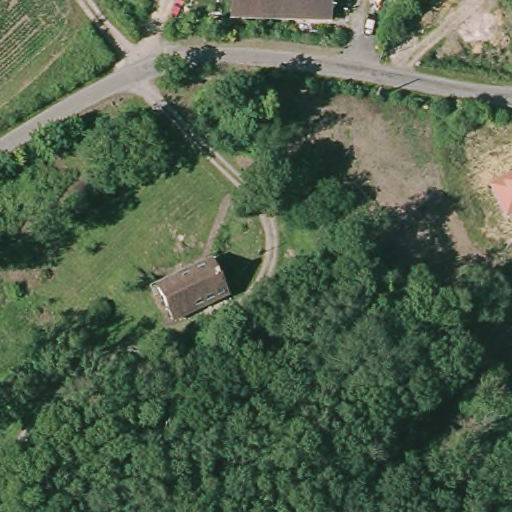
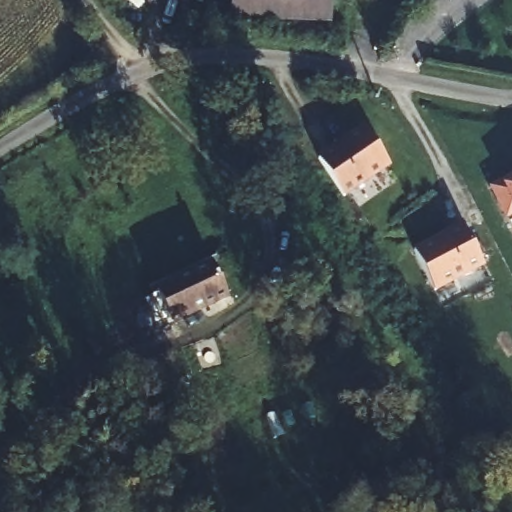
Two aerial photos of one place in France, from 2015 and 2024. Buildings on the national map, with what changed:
unchanged [(221,6),(222,1),(226,1),(227,0),(332,0),(331,11),(221,6)]
new [(343,196),(318,156),(362,126),(391,168),(343,196)]
unchanged [(490,186),(512,177),(512,218),(506,221),(490,186)]
new [(435,291),(415,247),(463,223),(485,268),(435,291)]
unchanged [(206,259),(225,294),(176,322),(156,288),(206,259)]

